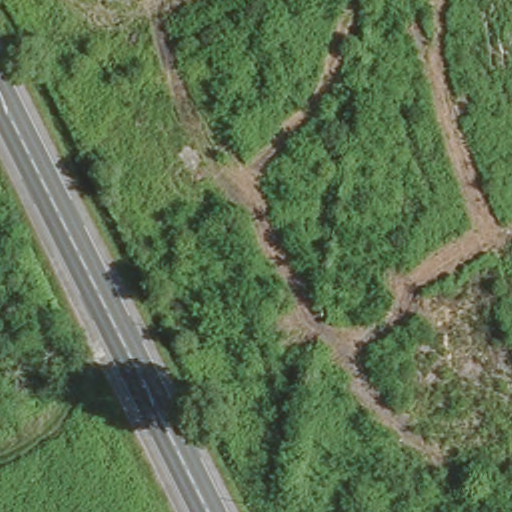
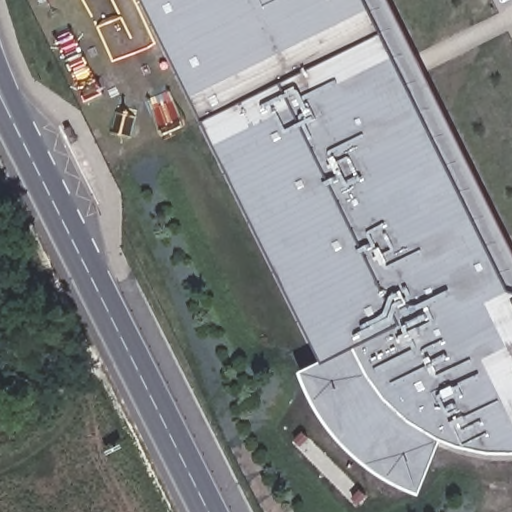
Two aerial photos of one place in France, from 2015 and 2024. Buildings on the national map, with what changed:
new [(512,272),(512,464),(502,465),(483,464),(455,457),(449,456),(425,444),(402,428),(382,409),(367,386),(356,363),(353,355),(321,370),(141,0),(382,0),(512,272)]
new [(321,370),(353,355),(356,363),(367,386),(382,409),(402,428),(425,444),(449,456),(412,502),(405,500),(379,487),(355,470),(335,450),(317,425),(305,399),(300,380),(321,370)]

